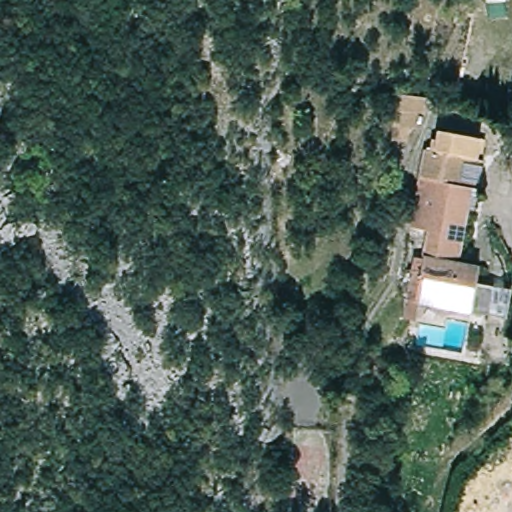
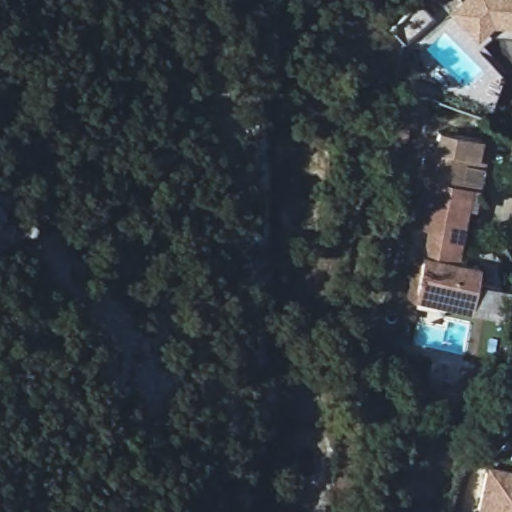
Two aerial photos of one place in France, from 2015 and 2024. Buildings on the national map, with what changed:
new [(512,0),(512,29),(489,25),(474,36),(455,10),(469,0),(512,0)]
unchanged [(490,163),(485,190),(478,190),(467,262),(481,266),(473,318),(438,312),(437,325),(407,317),(410,308),(412,272),(419,266),(420,231),(412,229),(428,148),(490,163)]
new [(487,466),(512,470),(512,512),(478,512),(487,466)]

